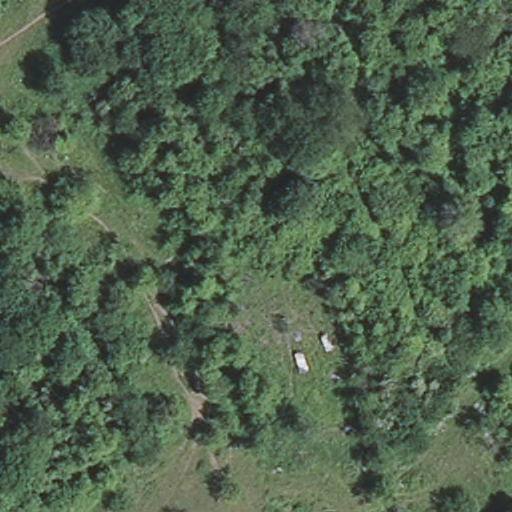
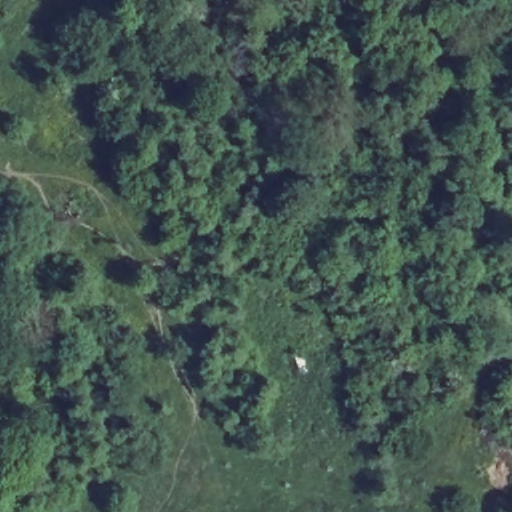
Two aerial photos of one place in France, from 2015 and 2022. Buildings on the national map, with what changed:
[]

